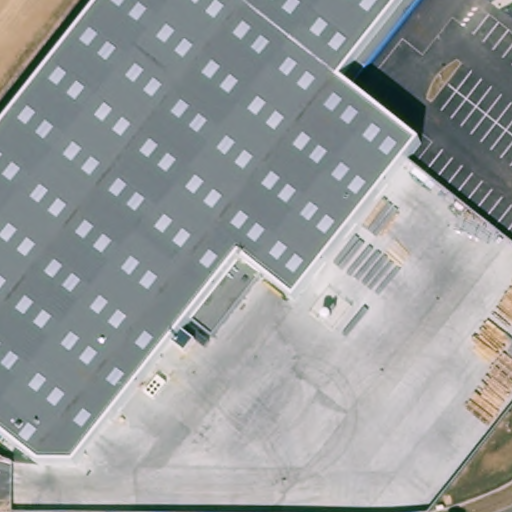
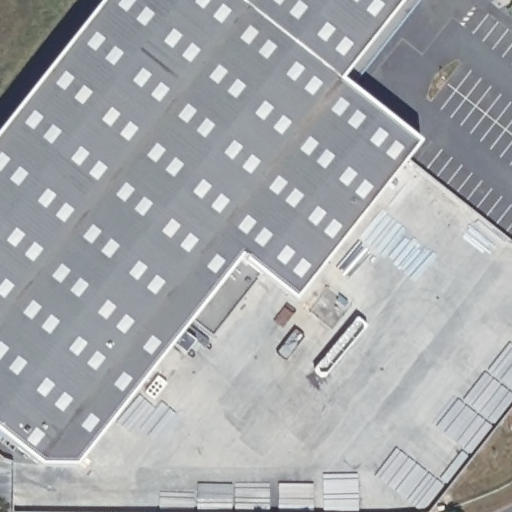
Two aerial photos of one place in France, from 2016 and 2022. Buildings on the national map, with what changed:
unchanged [(420,143),(296,300),(262,273),(211,336),(190,324),(77,466),(41,466),(0,433),(0,134),(106,0),(403,0),(340,80),(420,143)]

